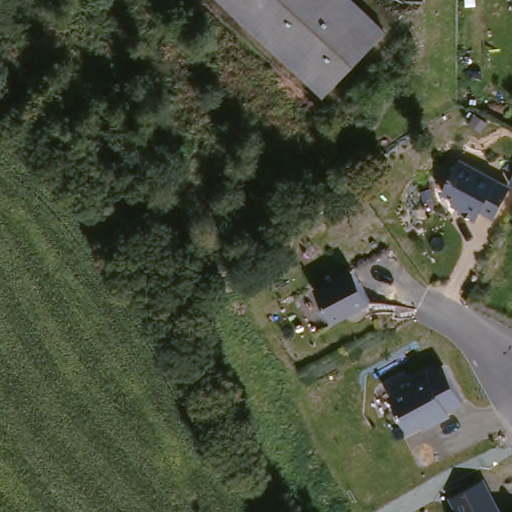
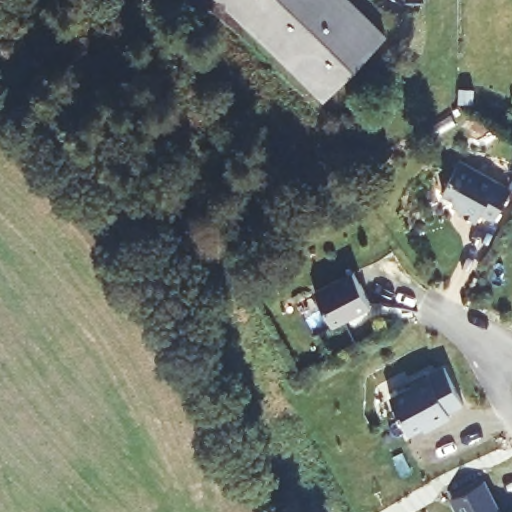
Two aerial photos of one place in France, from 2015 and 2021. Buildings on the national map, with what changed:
unchanged [(386,33),(326,96),(224,0),(351,0),(386,33)]
unchanged [(457,164),(509,191),(493,222),(479,215),(474,225),(457,216),(459,213),(450,209),(453,203),(440,196),(457,164)]
unchanged [(353,271),(371,303),(333,323),(316,291),(353,271)]
unchanged [(414,386),(410,380),(446,366),(463,403),(449,407),(451,416),(407,430),(390,395),(414,386)]
unchanged [(487,480),(505,512),(458,512),(449,499),(487,480)]

